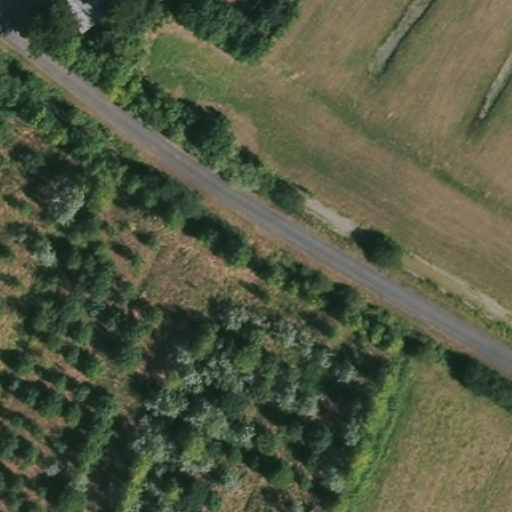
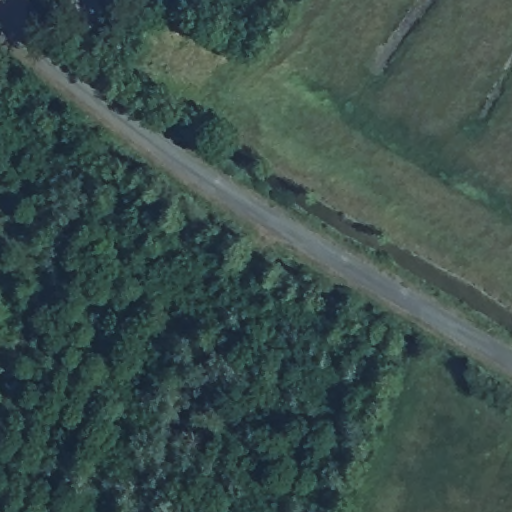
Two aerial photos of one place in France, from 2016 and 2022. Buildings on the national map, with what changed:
unchanged [(124,3),(85,31),(70,0),(122,0),(124,3)]

